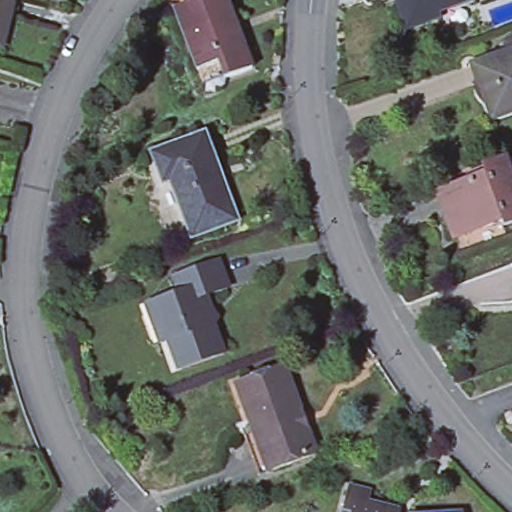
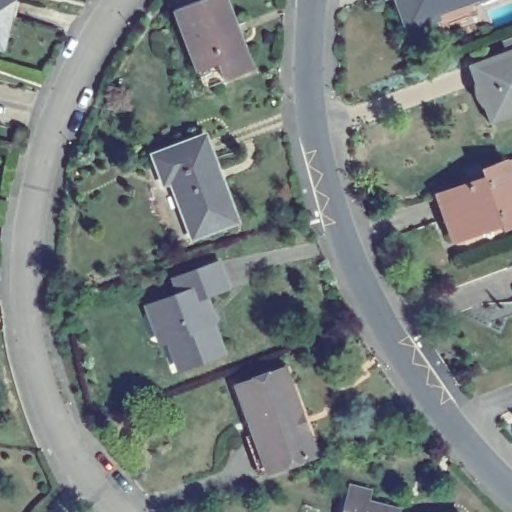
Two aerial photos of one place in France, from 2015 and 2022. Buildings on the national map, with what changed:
unchanged [(2,47),(0,47),(0,0),(12,0),(2,47)]
unchanged [(198,70),(174,8),(198,0),(221,0),(248,72),(223,80),(204,86),(198,70)]
unchanged [(410,21),(403,0),(473,0),(410,21)]
unchanged [(491,126),(477,83),(482,80),(477,64),(487,61),(512,53),(512,119),(491,126)]
unchanged [(165,183),(154,155),(205,137),(235,220),(193,236),(172,180),(165,183)]
unchanged [(512,182),(512,227),(505,229),(502,224),(455,241),(439,196),(471,185),(469,177),(485,172),(505,164),(512,182)]
unchanged [(220,262),(230,289),(210,297),(215,312),(207,314),(212,326),(215,324),(227,355),(184,371),(169,330),(157,325),(150,305),(183,294),(177,278),(220,262)]
unchanged [(261,474),(248,437),(255,434),(238,387),(287,369),(317,454),(276,470),(263,475),(261,474)]
unchanged [(346,512),(350,497),(352,487),(374,492),(371,502),(400,510),(401,512),(346,512)]

